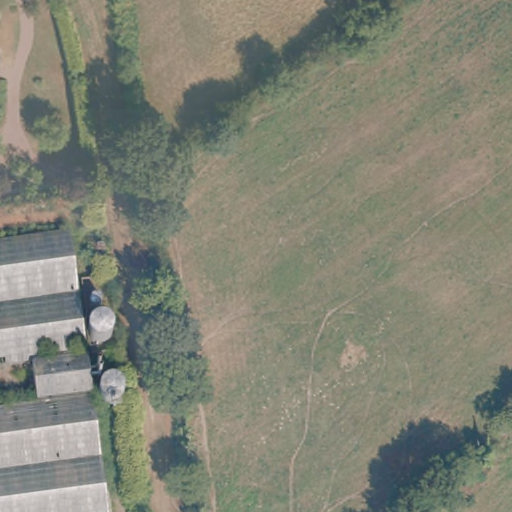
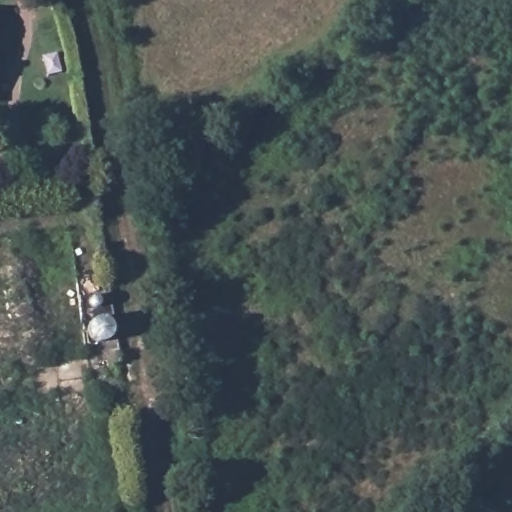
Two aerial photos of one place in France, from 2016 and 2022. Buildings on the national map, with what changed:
demolished [(0,512),(0,402),(31,398),(26,361),(0,364),(0,239),(70,231),(112,512),(0,512)]

